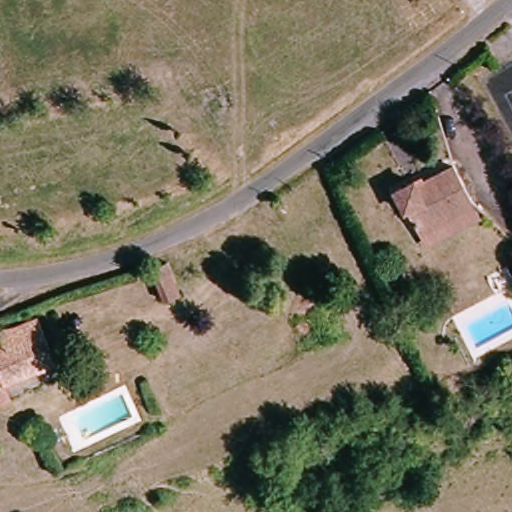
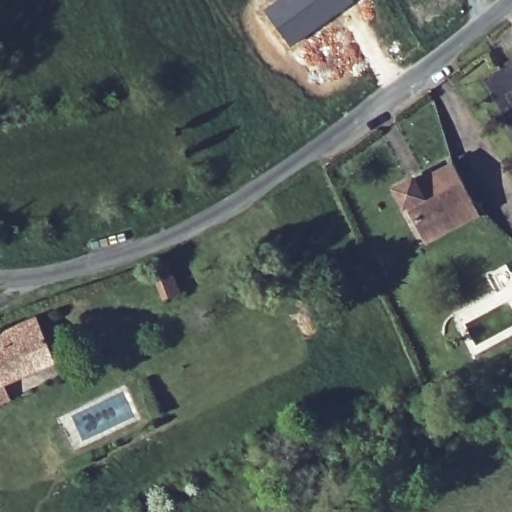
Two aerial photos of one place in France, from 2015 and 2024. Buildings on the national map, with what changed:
new [(274,0),(352,0),(354,2),(290,47),(262,9),(274,0)]
unchanged [(457,174),(473,207),(419,235),(410,215),(405,214),(396,195),(412,185),(415,194),(457,174)]
unchanged [(156,303),(139,268),(154,261),(173,295),(156,303)]
unchanged [(6,345),(6,337),(34,325),(52,365),(45,367),(37,378),(30,380),(22,377),(2,385),(0,387),(0,349),(6,345)]

